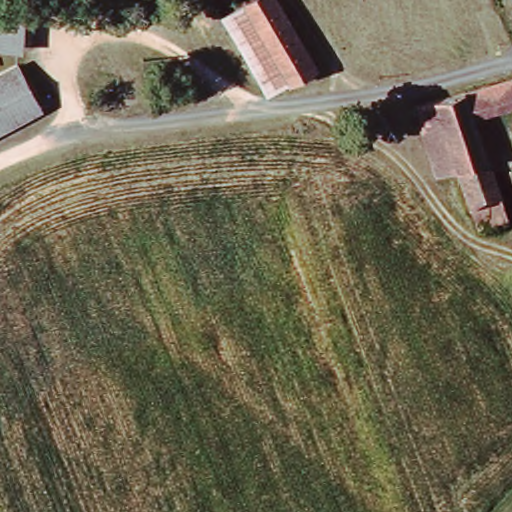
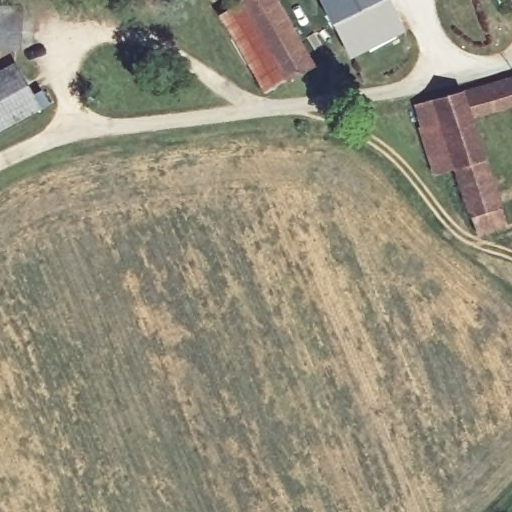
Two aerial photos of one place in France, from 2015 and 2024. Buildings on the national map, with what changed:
unchanged [(182,14),(169,22),(159,4),(165,0),(173,0),(182,14)]
unchanged [(274,86),(232,13),(254,0),(280,0),(317,61),(274,86)]
new [(339,26),(327,0),(393,0),(339,26)]
new [(393,0),(395,0),(410,32),(355,59),(339,26),(393,0)]
unchanged [(0,48),(0,8),(24,10),(21,50),(0,48)]
unchanged [(18,70),(41,110),(0,132),(0,80),(18,70)]
unchanged [(512,82),(512,111),(477,123),(468,94),(512,82)]
unchanged [(479,220),(461,174),(442,126),(424,132),(414,106),(468,94),(477,123),(508,209),(512,220),(512,227),(485,237),(479,220)]
unchanged [(424,132),(442,126),(461,174),(440,182),(421,133),(424,132)]

